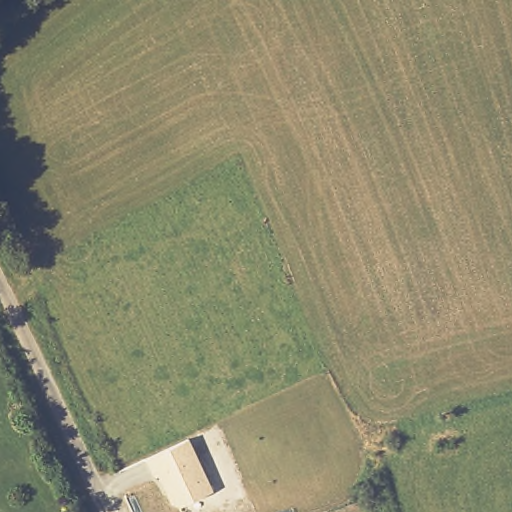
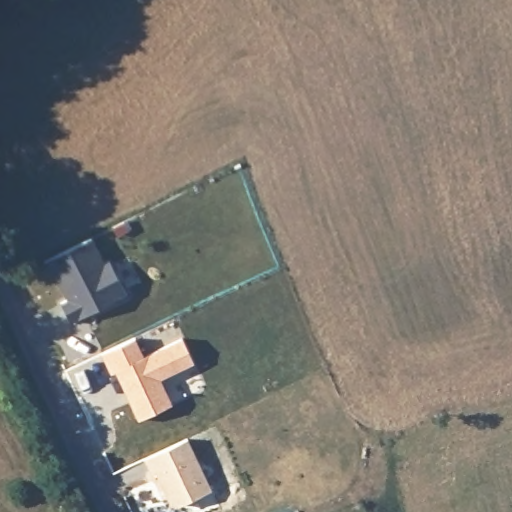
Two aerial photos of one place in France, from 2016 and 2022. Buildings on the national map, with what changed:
new [(92,235),(106,262),(110,259),(129,295),(73,324),(61,302),(69,299),(57,276),(53,278),(45,261),(92,235)]
new [(137,336),(146,354),(184,338),(195,362),(162,378),(174,403),(140,420),(116,371),(112,374),(102,353),(137,336)]
unchanged [(189,439),(212,491),(174,509),(157,473),(152,475),(146,458),(189,439)]

